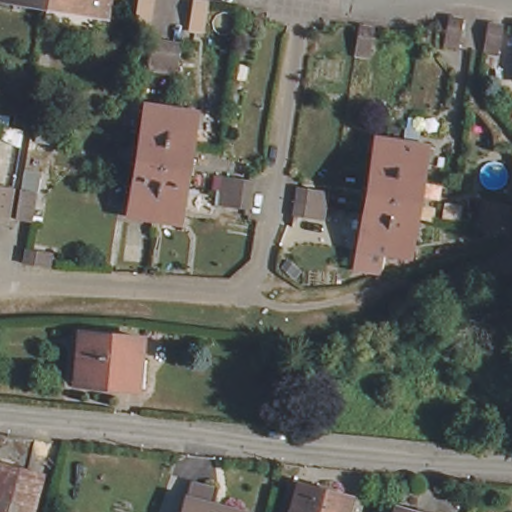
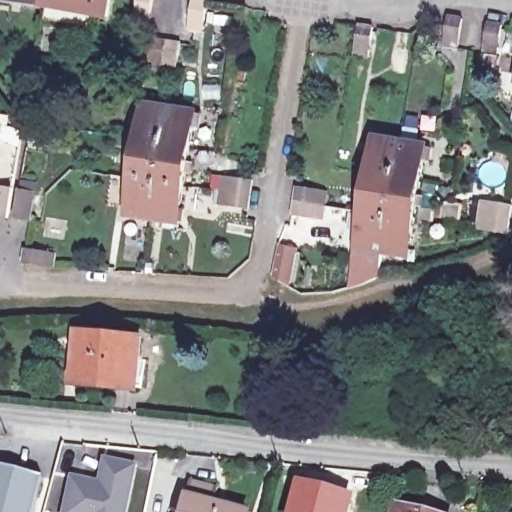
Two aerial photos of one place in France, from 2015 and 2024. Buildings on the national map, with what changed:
unchanged [(110,14),(17,0),(112,0),(110,14)]
unchanged [(150,21),(135,18),(138,0),(153,0),(150,21)]
unchanged [(206,1),(201,31),(185,29),(191,0),(197,0),(206,1)]
unchanged [(459,16),(455,46),(442,44),(446,20),(446,15),(459,16)]
unchanged [(498,53),(480,51),(485,22),(502,24),(498,53)]
unchanged [(373,25),(369,57),(353,55),(357,23),(373,25)]
unchanged [(176,77),(145,73),(150,42),(180,47),(176,77)]
unchanged [(128,218),(146,108),(195,116),(177,225),(128,218)]
unchanged [(357,245),(375,137),(423,145),(406,252),(357,245)]
unchanged [(248,210),(217,206),(221,175),(252,180),(248,210)]
unchanged [(331,190),(326,219),(296,216),(301,186),(331,190)]
unchanged [(31,223),(0,219),(0,190),(35,194),(31,223)]
unchanged [(477,227),(481,199),(511,204),(507,231),(477,227)]
unchanged [(80,381),(85,330),(147,335),(143,386),(80,381)]
new [(63,512),(71,475),(98,481),(103,457),(139,465),(128,512),(63,512)]
unchanged [(30,512),(0,512),(0,463),(40,474),(30,512)]
unchanged [(288,512),(295,483),(348,498),(344,512),(288,512)]
unchanged [(215,512),(184,512),(190,489),(218,497),(215,512)]
unchanged [(418,512),(393,512),(395,505),(418,512)]

